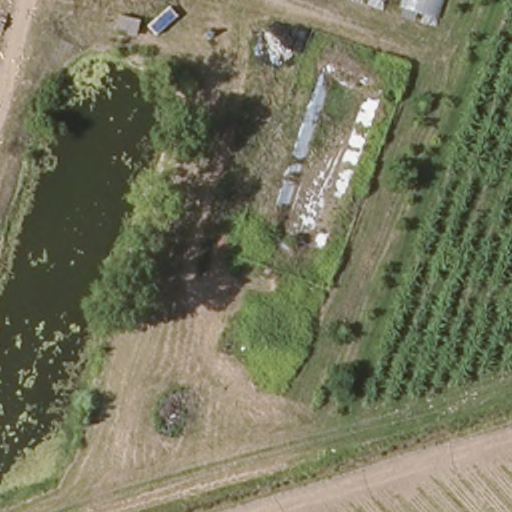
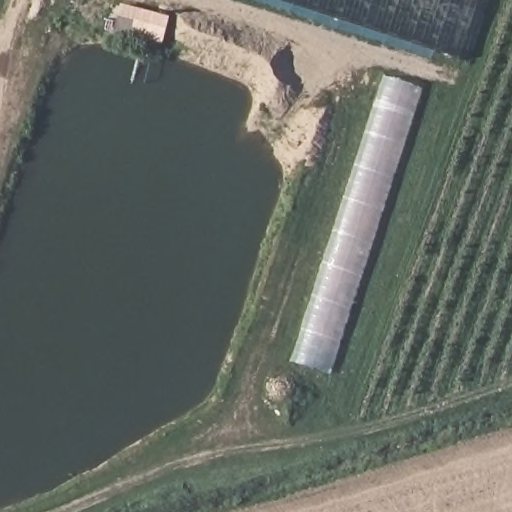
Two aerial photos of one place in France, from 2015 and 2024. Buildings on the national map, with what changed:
unchanged [(351,0),(445,0),(436,27),(351,0)]
new [(430,48),(436,27),(445,0),(486,0),(466,60),(430,48)]
new [(420,89),(328,374),(288,361),(381,76),(420,89)]

